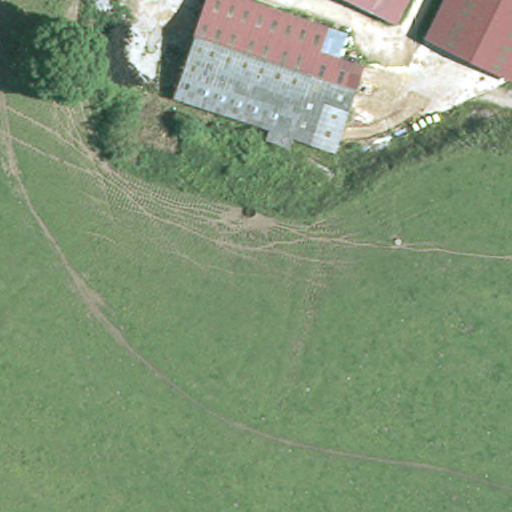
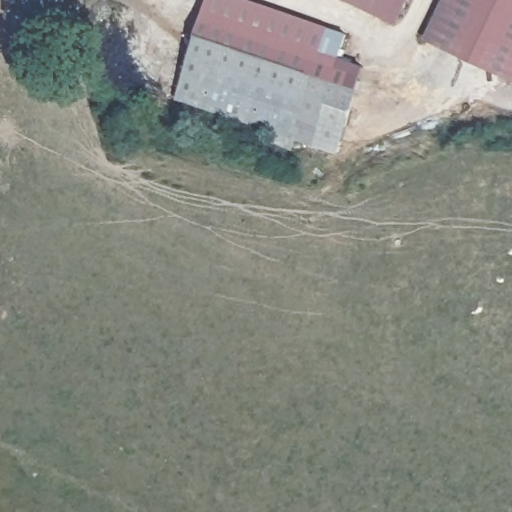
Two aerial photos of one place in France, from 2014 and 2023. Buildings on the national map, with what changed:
unchanged [(255,0),(337,28),(329,52),(353,60),(325,145),(163,92),(193,0),(255,0)]
unchanged [(356,0),(405,0),(395,20),(356,0)]
unchanged [(431,40),(450,0),(512,0),(512,79),(431,40)]

